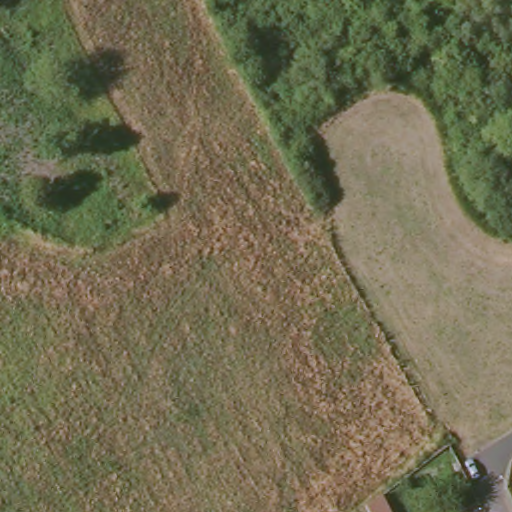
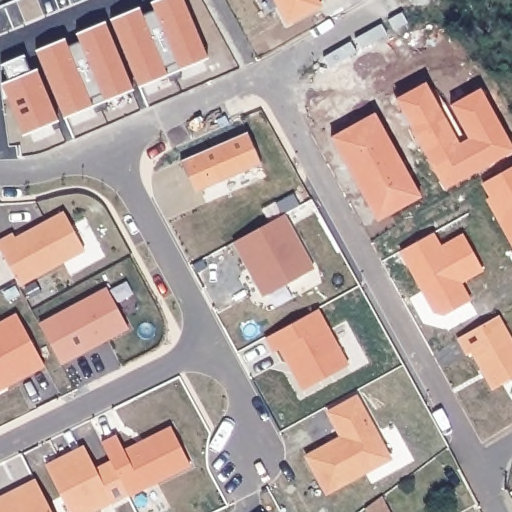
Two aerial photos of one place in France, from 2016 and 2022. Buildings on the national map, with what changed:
new [(139,5),(143,12),(155,7),(152,0),(185,0),(209,55),(141,85),(111,17),(139,5)]
new [(330,5),(298,22),(285,0),(327,0),(330,5)]
new [(65,37),(69,45),(81,40),(78,32),(105,20),(135,87),(68,117),(38,50),(65,37)]
new [(26,55),(33,71),(39,69),(62,121),(27,136),(4,84),(10,81),(3,65),(26,55)]
new [(403,109),(398,101),(415,92),(428,85),(462,146),(472,140),(453,107),(483,91),(507,135),(512,144),(512,155),(508,157),(466,180),(448,191),(443,182),(403,109)]
new [(376,115),(423,198),(379,222),(334,139),(376,115)]
new [(183,157),(249,127),(263,160),(197,189),(183,157)]
new [(512,241),(509,235),(510,230),(506,221),(502,224),(489,199),(493,197),(485,183),(512,168),(512,241)]
new [(20,282),(0,245),(0,239),(14,231),(16,236),(65,210),(85,247),(20,282)]
new [(316,265),(266,292),(236,238),(286,211),(316,265)]
new [(434,234),(443,248),(466,235),(485,270),(462,283),(472,302),(448,315),(436,312),(425,291),(427,286),(423,279),(419,281),(403,252),(434,234)]
new [(63,361),(41,322),(108,286),(129,325),(63,361)]
new [(304,388),(295,372),(298,366),(286,343),(276,349),(268,335),(319,307),(349,363),(304,388)]
new [(18,312),(46,363),(18,378),(16,376),(10,379),(9,383),(0,388),(0,321),(18,312)]
new [(512,339),(512,382),(495,392),(474,353),(469,356),(460,339),(499,317),(512,339)]
new [(329,492),(309,455),(350,432),(346,427),(341,430),(329,410),(358,395),(392,457),(329,492)]
new [(131,493),(103,441),(118,433),(126,448),(173,425),(192,462),(131,493)]
new [(72,512),(48,463),(86,445),(98,467),(113,460),(129,491),(88,512),(72,512)]
new [(10,495),(15,497),(24,493),(20,487),(38,478),(55,512),(0,512),(0,500),(10,495)]
unchanged [(368,512),(364,502),(381,489),(393,512),(368,512)]

